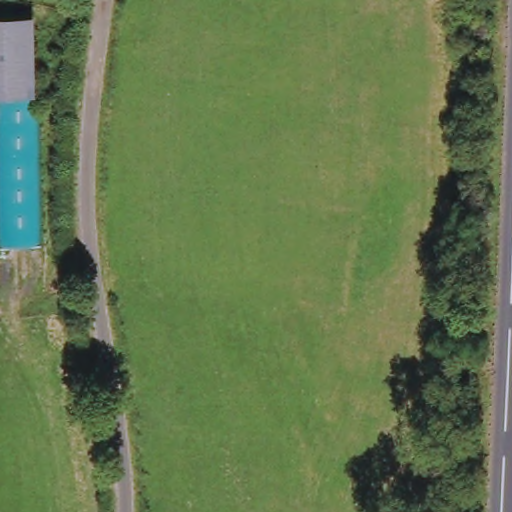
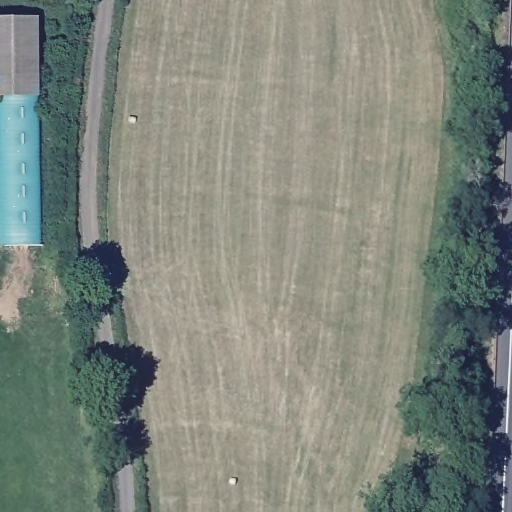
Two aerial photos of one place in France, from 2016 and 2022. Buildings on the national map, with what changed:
unchanged [(35,97),(0,95),(0,19),(37,21),(35,97)]
unchanged [(35,250),(0,247),(0,95),(35,97),(40,97),(35,250)]

